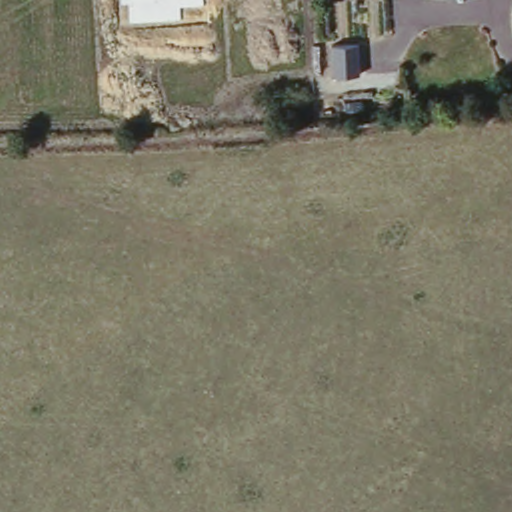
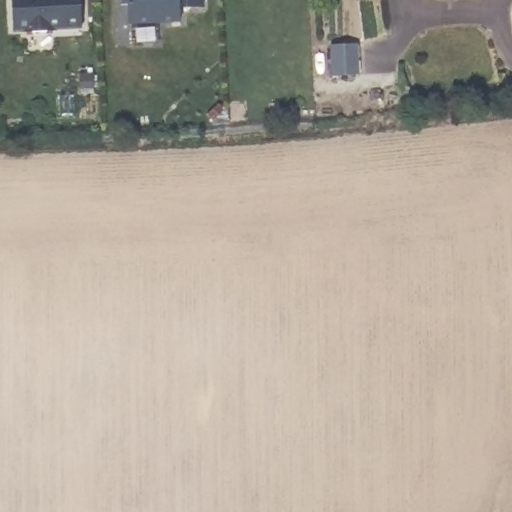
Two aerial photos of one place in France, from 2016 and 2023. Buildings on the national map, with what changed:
new [(54,26),(54,31),(27,31),(27,29),(15,29),(14,0),(82,0),(83,24),(54,26)]
new [(180,2),(180,15),(130,17),(129,3),(123,4),(123,0),(204,0),(204,1),(180,2)]
unchanged [(355,29),(358,59),(331,61),(328,31),(355,29)]

